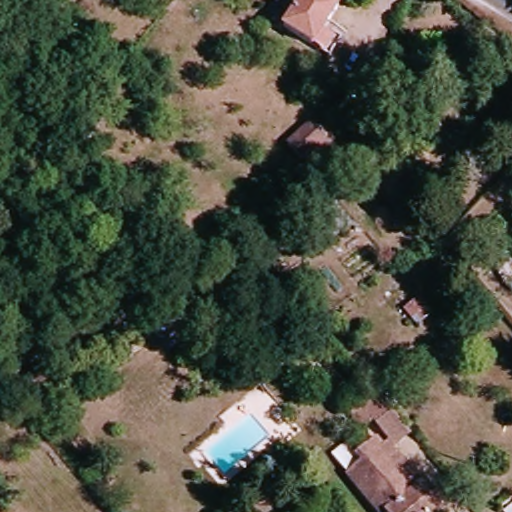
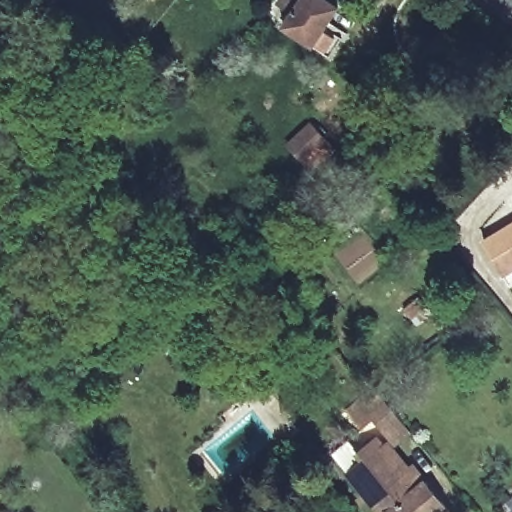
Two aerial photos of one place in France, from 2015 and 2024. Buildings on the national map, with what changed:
unchanged [(332,25),(352,40),(336,59),(290,27),(309,0),(336,0),(346,7),(332,25)]
unchanged [(337,149),(310,176),(282,150),(307,124),(337,149)]
new [(512,222),(512,278),(507,280),(481,239),(512,222)]
unchanged [(401,442),(380,417),(370,425),(355,405),(380,383),(417,428),(401,442)]
unchanged [(441,511),(442,512),(398,512),(395,508),(390,512),(357,470),(374,456),(366,446),(384,433),(413,468),(421,461),(433,475),(454,500),(441,511)]

